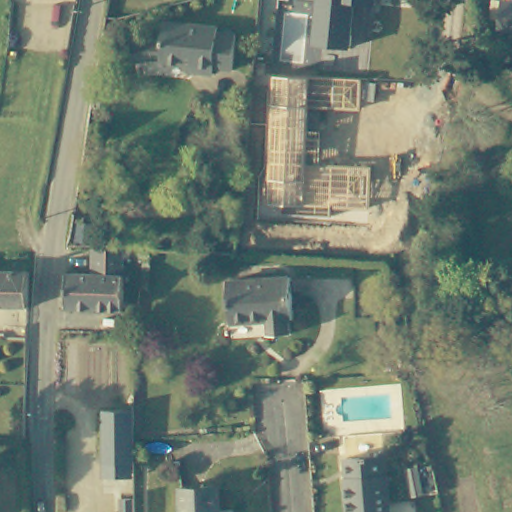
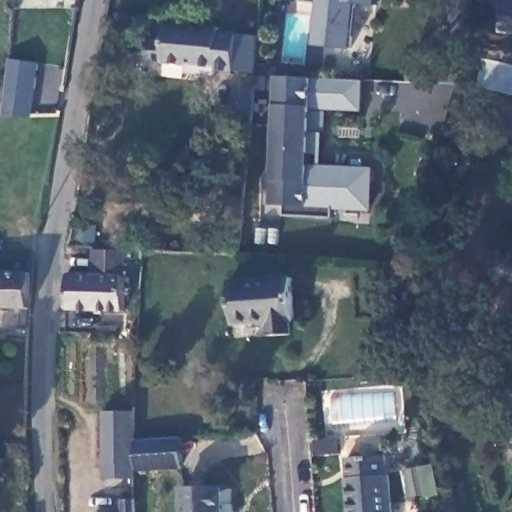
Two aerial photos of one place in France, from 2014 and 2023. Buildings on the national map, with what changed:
unchanged [(377,5),(355,4),(351,48),(313,45),(318,2),(303,0),(377,0),(377,5)]
unchanged [(504,5),(512,6),(512,41),(500,40),(504,5)]
unchanged [(178,61),(161,60),(164,21),(219,25),(218,31),(236,32),(233,68),(215,66),(215,72),(192,70),(177,69),(178,61)]
new [(30,116),(0,116),(7,59),(38,63),(30,116)]
unchanged [(309,77),(362,80),(361,111),(309,109),(308,132),(321,134),(319,165),(371,168),(368,210),(330,209),(330,218),(282,216),(282,205),(268,205),(274,75),(309,77)]
unchanged [(122,310),(65,309),(66,276),(95,276),(95,249),(124,250),(122,310)]
unchanged [(0,302),(0,266),(23,267),(22,303),(0,302)]
unchanged [(290,269),(293,309),(288,309),(289,323),(269,325),(268,311),(230,314),(227,273),(290,269)]
unchanged [(133,464),(104,465),(103,413),(133,412),(133,440),(133,464)]
unchanged [(387,472),(391,512),(347,512),(343,475),(347,474),(345,456),(383,453),(385,472),(387,472)]
unchanged [(180,512),(180,479),(218,479),(219,512),(180,512)]
unchanged [(133,500),(134,512),(122,512),(122,500),(133,500)]

